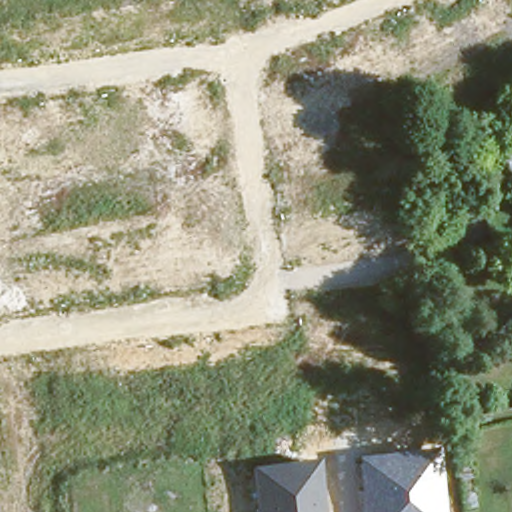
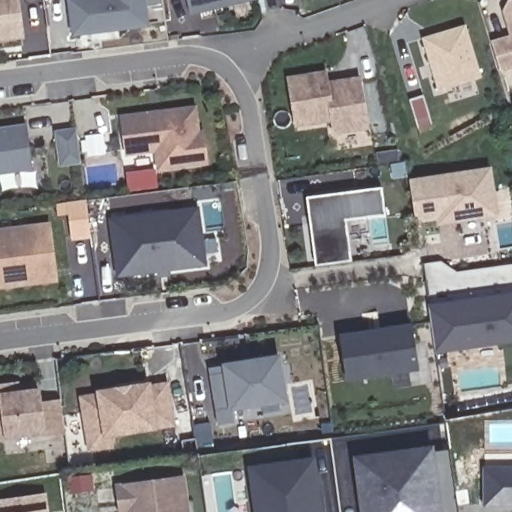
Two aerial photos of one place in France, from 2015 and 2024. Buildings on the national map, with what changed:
new [(1,37),(0,37),(0,0),(20,0),(25,39),(1,41),(1,37)]
new [(74,31),(71,0),(143,0),(145,23),(74,31)]
new [(187,0),(255,0),(191,15),(187,0)]
new [(492,41),(509,36),(503,10),(509,0),(512,0),(512,69),(501,72),(492,41)]
new [(439,91),(422,37),(466,24),(483,77),(439,91)]
new [(333,135),(331,124),(294,129),(287,76),(327,71),(329,80),(361,75),(370,130),(333,135)]
new [(158,171),(155,154),(125,157),(119,115),(197,106),(201,130),(205,130),(210,165),(158,171)]
new [(0,128),(26,125),(33,171),(0,176),(0,128)]
new [(76,129),(81,161),(61,164),(57,131),(76,129)]
new [(441,212),(418,215),(413,180),(492,169),(498,211),(463,215),(441,218),(441,212)]
new [(319,261),(318,257),(310,192),(386,184),(390,215),(347,220),(351,253),(351,258),(319,261)]
new [(117,278),(110,217),(200,206),(208,267),(117,278)]
new [(0,228),(50,221),(59,281),(0,289),(0,228)]
new [(436,354),(428,304),(512,292),(512,342),(436,354)]
new [(414,325),(420,369),(349,379),(343,334),(414,325)]
new [(254,398),(254,404),(233,407),(235,420),(219,422),(212,368),(227,366),(228,371),(250,368),(249,362),(278,358),(284,393),(254,398)]
new [(45,433),(4,438),(0,439),(0,383),(21,380),(24,390),(40,387),(41,400),(61,398),(66,433),(45,436),(45,433)]
new [(158,430),(112,436),(113,449),(88,452),(79,393),(96,390),(151,382),(169,381),(175,426),(158,430)]
unchanged [(355,456),(435,445),(444,512),(362,512),(355,456)]
unchanged [(324,512),(255,512),(249,467),(316,456),(324,512)]
new [(483,507),(482,466),(512,466),(512,507),(483,507)]
new [(190,512),(120,512),(116,483),(185,474),(190,512)]
new [(45,495),(48,512),(3,512),(1,500),(45,495)]

